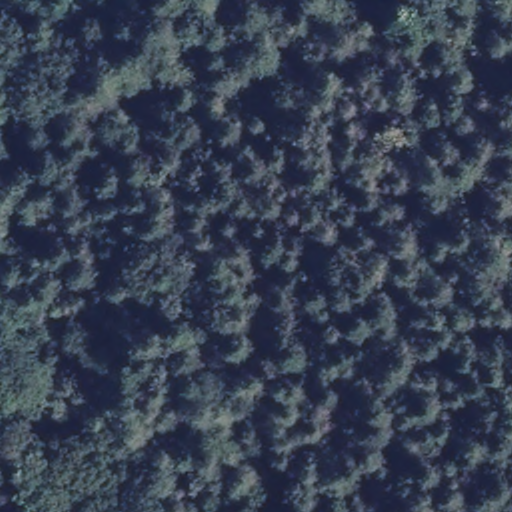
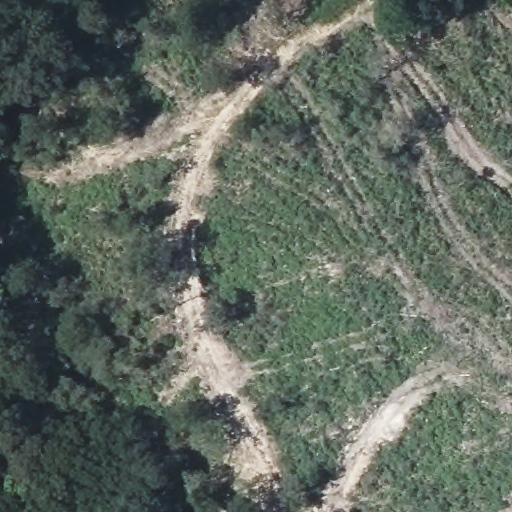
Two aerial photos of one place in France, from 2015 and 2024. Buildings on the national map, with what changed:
[]

